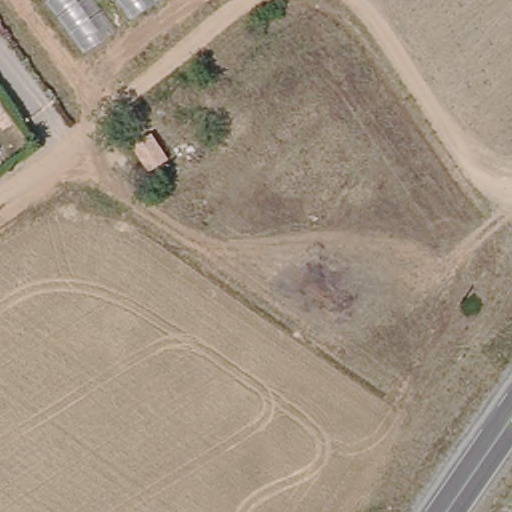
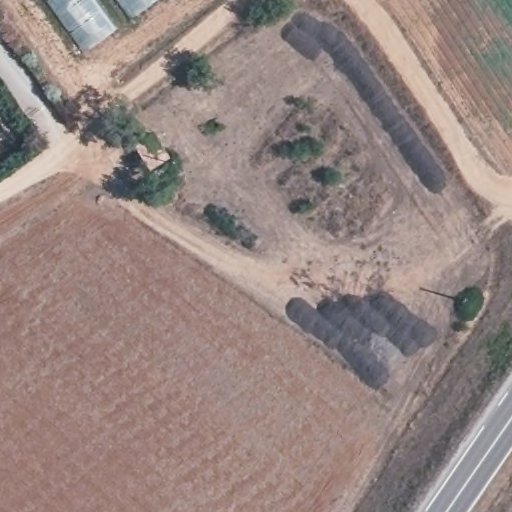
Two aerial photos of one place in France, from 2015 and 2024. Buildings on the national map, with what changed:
unchanged [(84,55),(44,0),(95,0),(117,30),(84,55)]
unchanged [(130,21),(114,0),(159,0),(130,21)]
unchanged [(132,146),(121,129),(132,121),(144,138),(132,146)]

